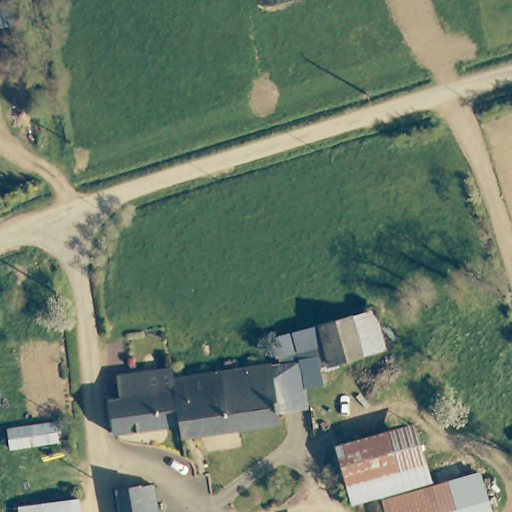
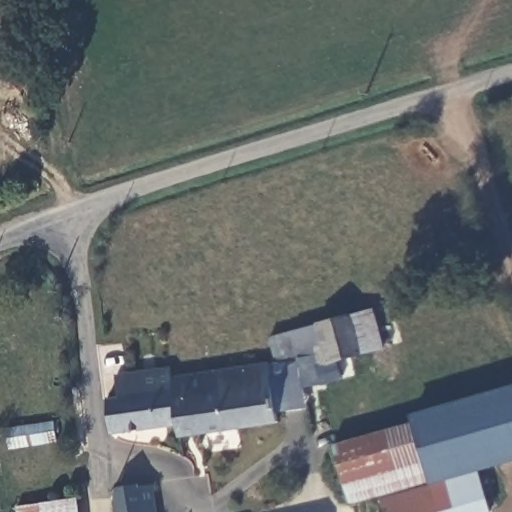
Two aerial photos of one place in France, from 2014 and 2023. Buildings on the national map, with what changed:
unchanged [(0,22),(0,0),(11,0),(14,20),(0,22)]
unchanged [(311,348),(313,347),(311,340),(318,338),(314,324),(349,315),(372,308),(382,348),(360,353),(316,365),(311,348)]
unchanged [(172,387),(116,396),(111,365),(148,360),(150,374),(169,371),(170,376),(172,387)]
unchanged [(275,410),(267,365),(294,360),(296,363),(304,405),(275,410)]
unchanged [(275,410),(277,420),(226,427),(217,369),(267,363),(267,365),(275,410)]
unchanged [(107,397),(116,396),(172,387),(170,376),(217,369),(226,427),(178,434),(176,422),(110,432),(107,397)]
new [(428,484),(411,428),(409,414),(512,388),(512,463),(476,473),(477,476),(381,504),(381,498),(428,484)]
unchanged [(10,428),(57,420),(59,438),(12,447),(10,428)]
unchanged [(411,428),(428,484),(350,507),(333,451),(411,428)]
unchanged [(488,512),(383,512),(381,504),(477,476),(488,512)]
unchanged [(145,488),(149,512),(112,512),(110,495),(145,488)]
unchanged [(73,500),(74,512),(21,512),(21,507),(73,500)]

